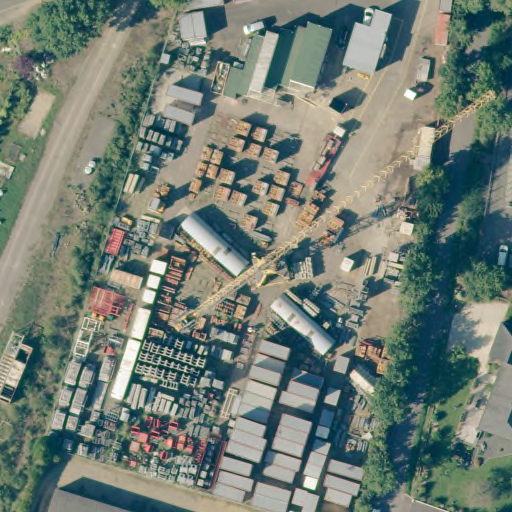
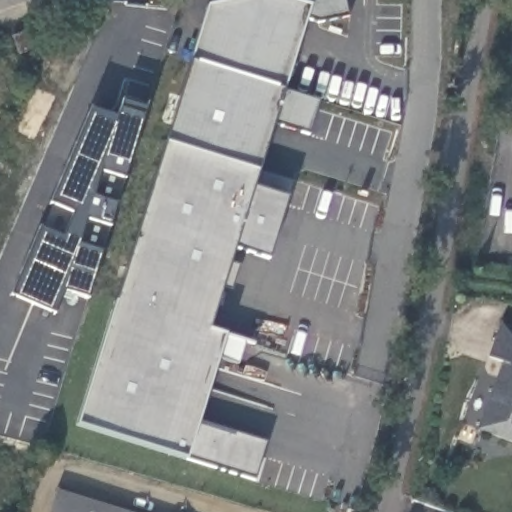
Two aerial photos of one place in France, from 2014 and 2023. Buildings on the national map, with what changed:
demolished [(371,72),(343,63),(355,25),(369,30),(374,14),(389,19),(371,72)]
unchanged [(13,30),(34,23),(36,29),(41,44),(19,51),(15,38),(13,30)]
new [(93,110),(116,118),(123,100),(145,106),(143,118),(126,180),(120,178),(113,200),(119,203),(112,227),(106,227),(99,249),(104,251),(89,299),(62,292),(53,313),(10,295),(93,110)]
new [(165,142),(259,170),(253,187),(287,197),(268,258),(233,247),(209,328),(225,332),(244,339),(237,365),(217,361),(199,422),(264,443),(253,478),(185,458),(74,425),(165,142)]
unchanged [(479,424),(504,361),(489,354),(504,318),(512,321),(512,437),(479,424)]
unchanged [(119,512),(49,512),(54,494),(119,512)]

